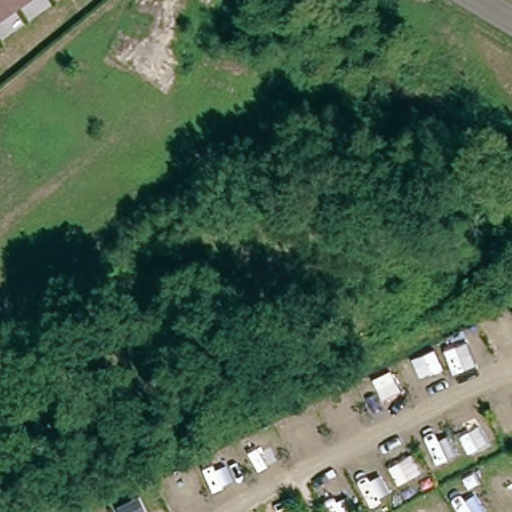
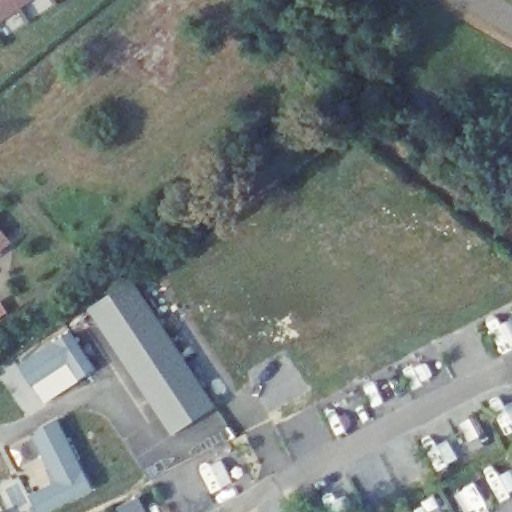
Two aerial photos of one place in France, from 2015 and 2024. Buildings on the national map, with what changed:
unchanged [(0,0),(15,0),(0,11),(0,0)]
new [(0,253),(0,234),(9,245),(0,253)]
new [(89,311),(132,280),(216,408),(171,436),(89,311)]
new [(17,366),(72,331),(96,370),(45,402),(17,366)]
new [(30,496),(55,483),(31,435),(59,421),(92,491),(48,512),(38,512),(30,496)]

